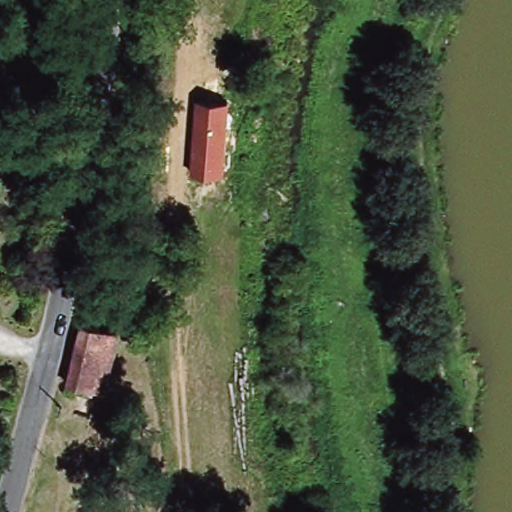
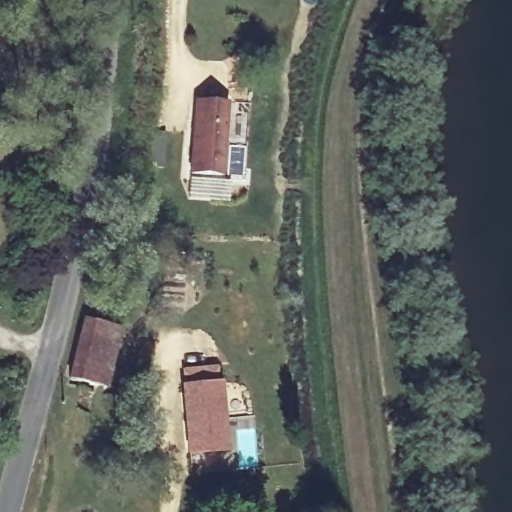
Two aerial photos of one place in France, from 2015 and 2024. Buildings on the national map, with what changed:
unchanged [(230,104),(225,176),(191,174),(196,101),(230,104)]
unchanged [(75,383),(92,318),(110,321),(95,387),(75,383)]
unchanged [(125,325),(118,359),(112,391),(95,387),(110,321),(125,325)]
new [(222,383),(229,453),(190,457),(181,386),(185,386),(181,371),(217,365),(222,383)]

